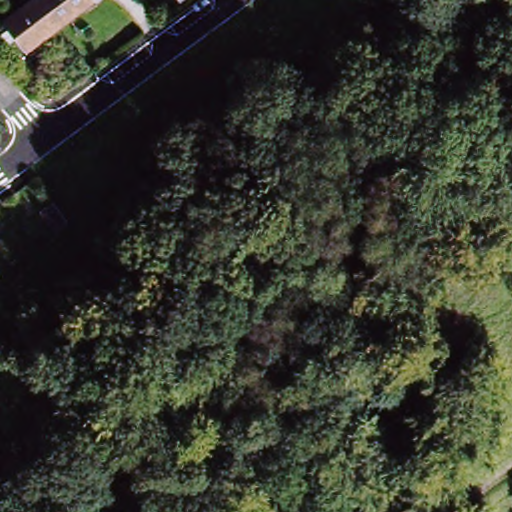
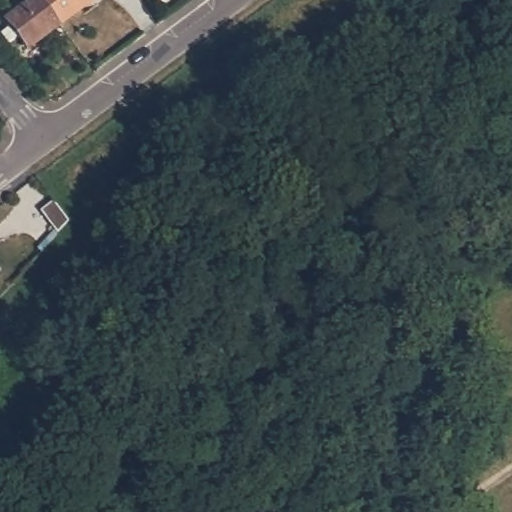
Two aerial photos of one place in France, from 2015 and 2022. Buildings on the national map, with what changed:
unchanged [(26,50),(5,21),(34,0),(40,0),(59,26),(26,50)]
unchanged [(40,0),(92,0),(94,2),(59,26),(40,0)]
unchanged [(70,224),(59,235),(42,214),(54,203),(70,224)]

